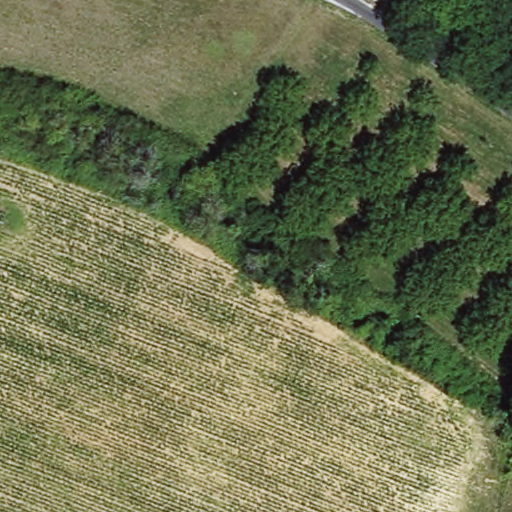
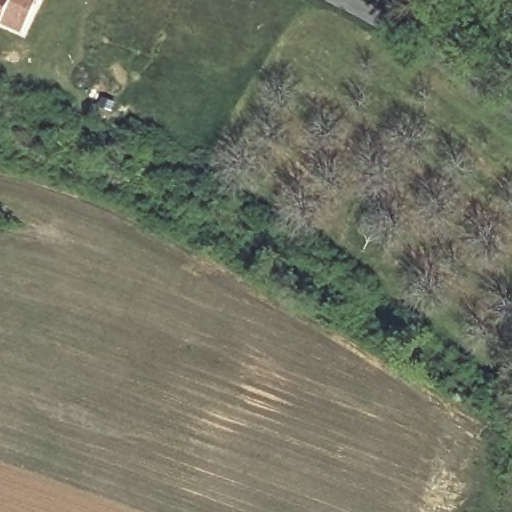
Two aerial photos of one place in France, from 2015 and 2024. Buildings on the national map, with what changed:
new [(0,24),(0,25),(0,0),(11,0),(0,24)]
new [(11,0),(37,0),(21,34),(0,24),(11,0)]

